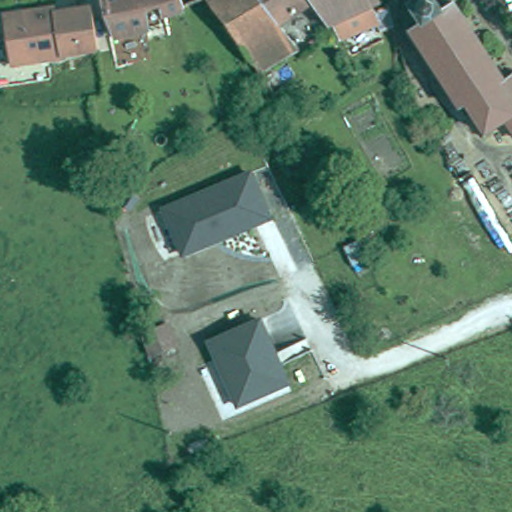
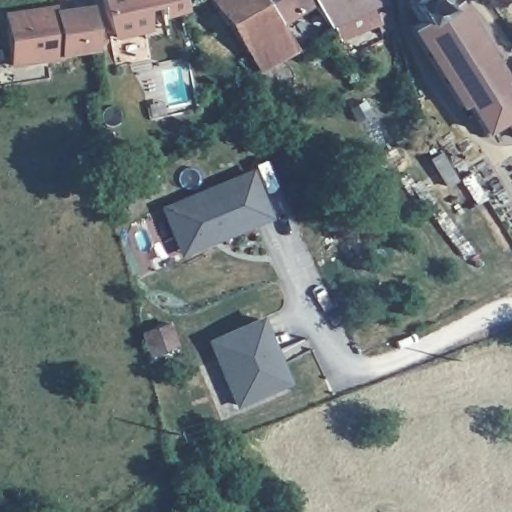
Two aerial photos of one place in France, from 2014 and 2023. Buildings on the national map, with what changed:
unchanged [(179,6),(160,13),(155,1),(137,6),(143,28),(114,36),(100,0),(176,0),(179,6)]
unchanged [(270,94),(254,71),(204,0),(260,0),(267,10),(291,48),(265,64),(280,88),(270,94)]
unchanged [(317,32),(291,48),(267,10),(260,0),(310,0),(319,14),(324,23),(327,26),(317,32)]
unchanged [(371,1),(324,23),(319,14),(310,0),(373,0),(371,1)]
unchanged [(410,33),(420,26),(407,6),(416,0),(437,0),(444,10),(453,4),(505,83),(512,78),(512,131),(507,124),(487,136),(468,106),(462,110),(410,33)]
unchanged [(60,58),(9,65),(2,13),(17,11),(22,16),(89,7),(95,48),(95,51),(59,56),(60,58)]
unchanged [(272,220),(181,255),(158,205),(245,167),(272,220)]
unchanged [(289,383),(238,403),(212,344),(266,319),(289,383)]
unchanged [(178,346),(146,356),(137,329),(168,321),(178,346)]

